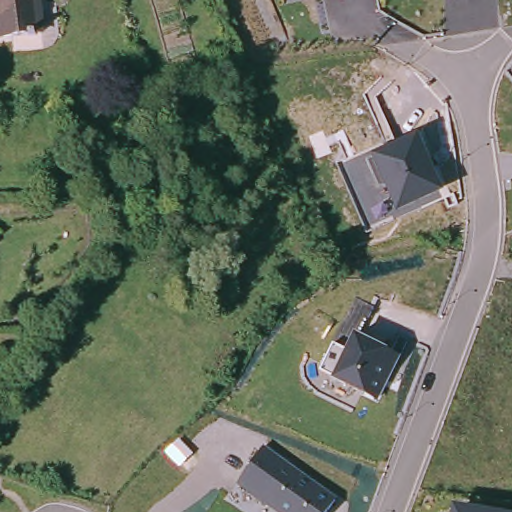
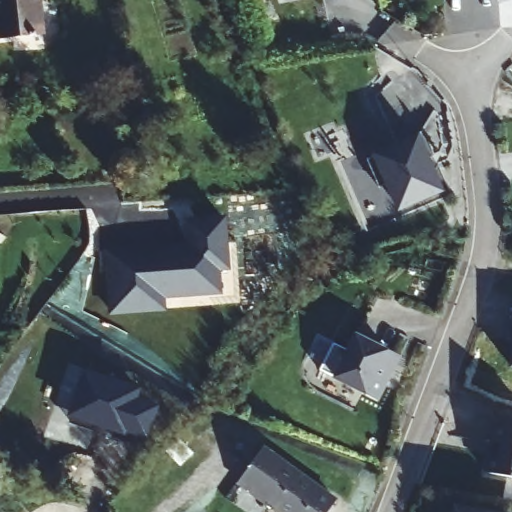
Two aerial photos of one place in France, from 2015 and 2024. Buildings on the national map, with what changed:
unchanged [(39,30),(0,34),(0,0),(36,0),(39,30)]
unchanged [(372,158),(371,153),(419,134),(443,191),(395,210),(386,186),(379,188),(368,160),(372,158)]
new [(108,315),(104,249),(185,243),(183,219),(226,215),(230,272),(223,295),(166,299),(167,311),(108,315)]
unchanged [(345,351),(354,333),(388,350),(399,354),(378,400),(365,393),(331,377),(320,369),(333,342),(345,351)]
new [(512,341),(512,368),(509,368),(512,341)]
new [(149,445),(66,417),(82,369),(140,388),(140,397),(159,405),(149,445)]
new [(484,472),(493,420),(512,424),(512,477),(484,472)]
unchanged [(326,512),(276,512),(237,483),(263,446),(335,497),(326,512)]
unchanged [(497,512),(451,512),(453,504),(497,512)]

